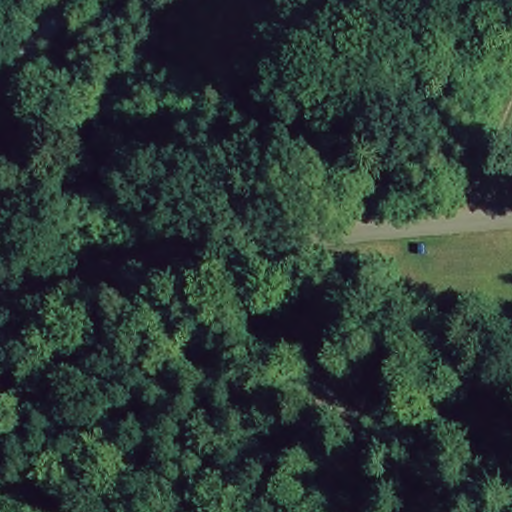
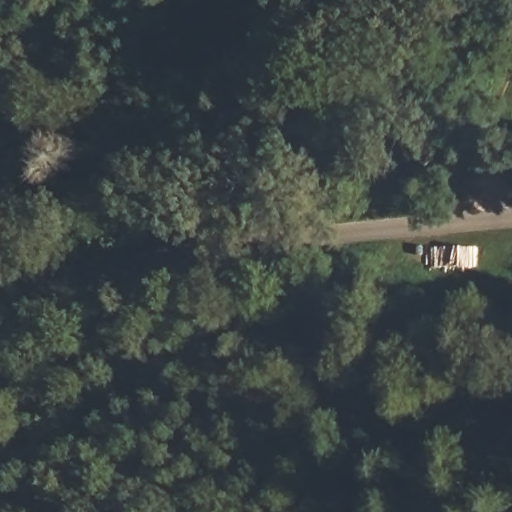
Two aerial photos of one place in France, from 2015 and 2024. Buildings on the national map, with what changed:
[]

